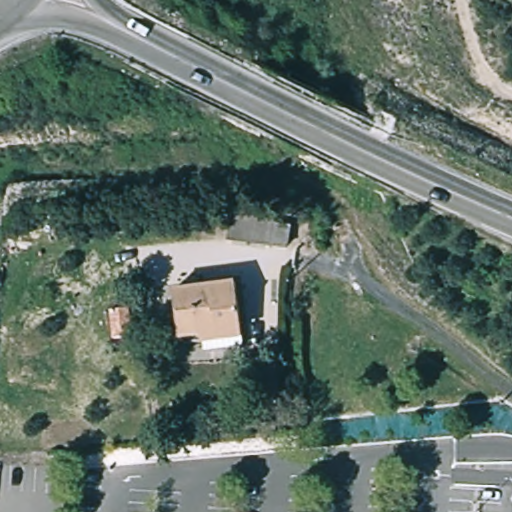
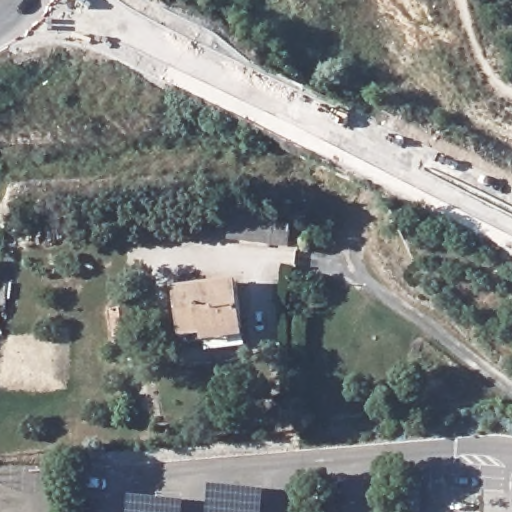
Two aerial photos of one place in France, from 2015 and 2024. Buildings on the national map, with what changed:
unchanged [(284,245),(243,240),(248,211),(288,216),(284,245)]
unchanged [(208,347),(205,329),(181,332),(175,286),(235,278),(241,323),(243,341),(208,347)]
new [(263,492),(261,512),(211,512),(213,487),(263,492)]
new [(130,512),(131,498),(184,504),(183,512),(130,512)]

